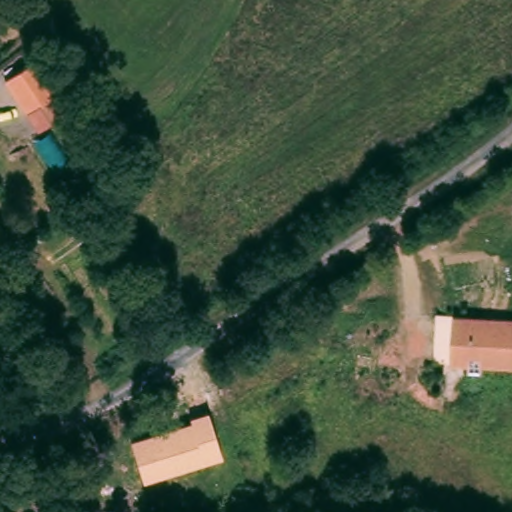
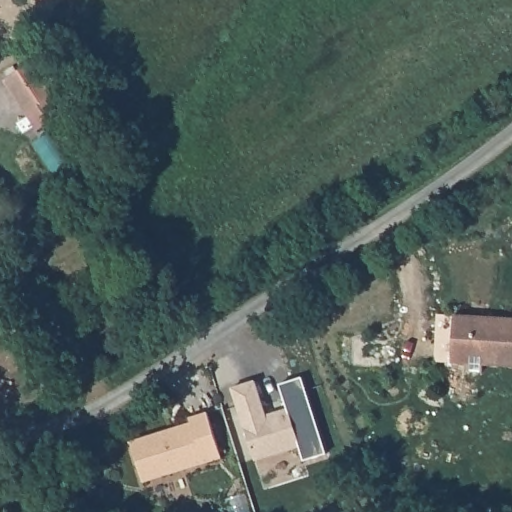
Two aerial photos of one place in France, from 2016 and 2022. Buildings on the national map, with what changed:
unchanged [(32,61),(55,95),(26,114),(4,81),(32,61)]
unchanged [(483,365),(483,373),(468,372),(468,364),(451,364),(434,363),(436,314),(454,315),(512,318),(512,367),(483,365)]
new [(248,381),(259,416),(280,409),(272,385),(295,378),(319,454),(296,461),(292,447),(248,460),(225,388),(248,381)]
unchanged [(131,442),(192,424),(191,419),(209,414),(223,459),(143,483),(131,442)]

